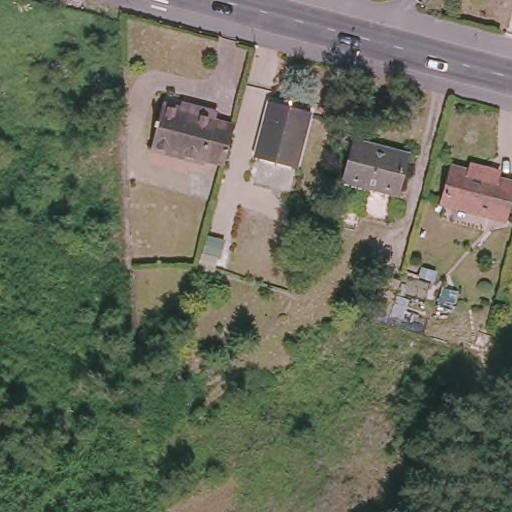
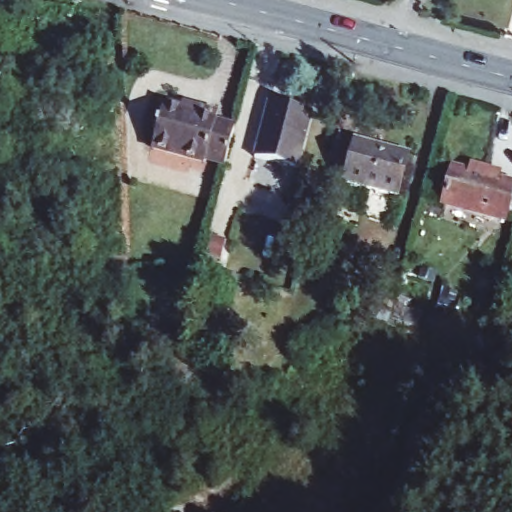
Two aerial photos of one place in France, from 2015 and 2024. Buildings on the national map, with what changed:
unchanged [(217,117),(236,122),(225,160),(206,155),(205,160),(152,145),(163,101),(182,106),(182,100),(197,104),(219,110),(217,117)]
unchanged [(312,112),(297,169),(256,158),(270,102),(312,112)]
unchanged [(407,150),(396,191),(345,177),(356,136),(407,150)]
unchanged [(505,220),(444,204),(453,167),(470,172),(472,164),(492,169),(502,172),(500,180),(512,183),(512,197),(505,220)]
unchanged [(384,275),(399,279),(388,322),(372,318),(384,275)]
unchanged [(460,292),(457,302),(442,297),(445,287),(460,292)]

